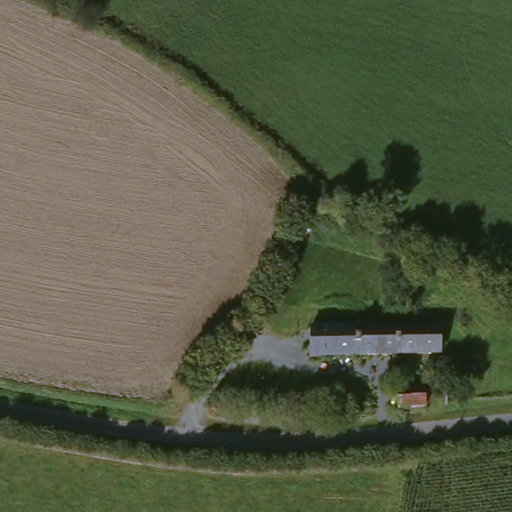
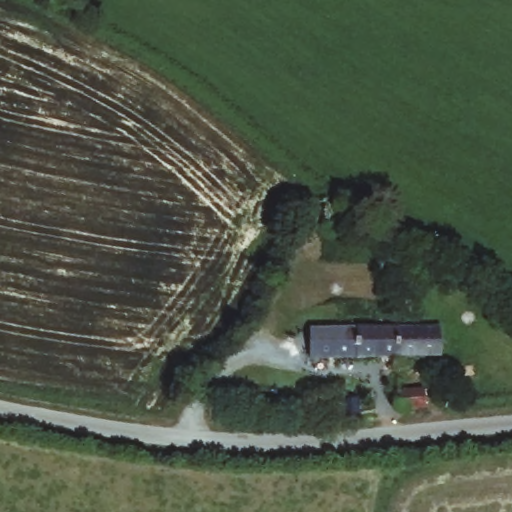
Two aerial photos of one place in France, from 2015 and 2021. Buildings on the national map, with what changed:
unchanged [(397,351),(399,328),(442,327),(442,358),(397,358),(397,351)]
unchanged [(397,351),(397,358),(309,359),(309,353),(290,353),(290,331),(308,330),(399,328),(397,351)]
unchanged [(421,392),(423,409),(395,412),(394,394),(421,392)]
unchanged [(347,402),(360,401),(362,416),(348,418),(347,402)]

